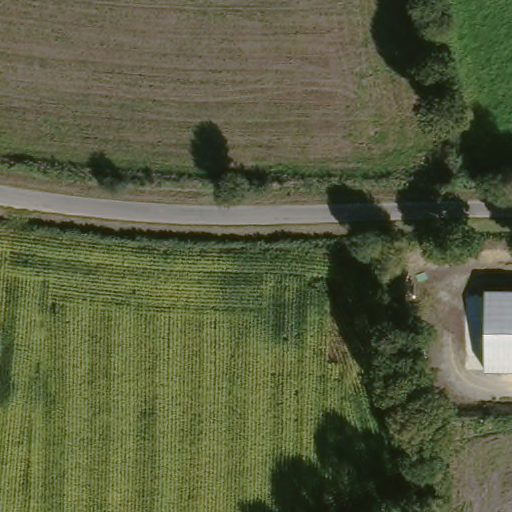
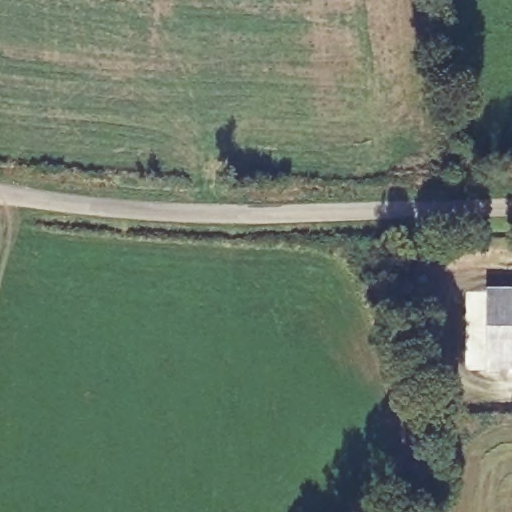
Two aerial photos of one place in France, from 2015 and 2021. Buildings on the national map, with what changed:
unchanged [(486,370),(488,290),(512,290),(512,370),(486,370)]

